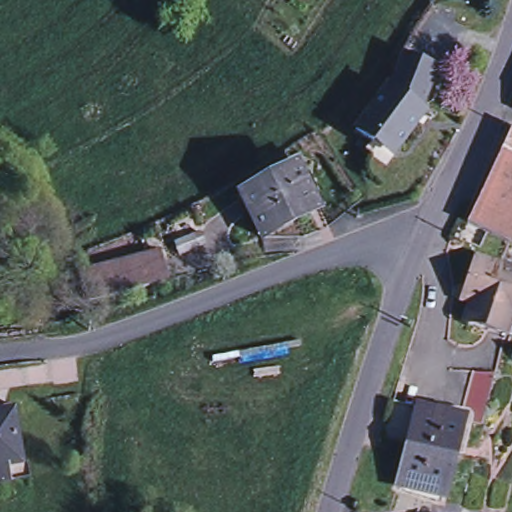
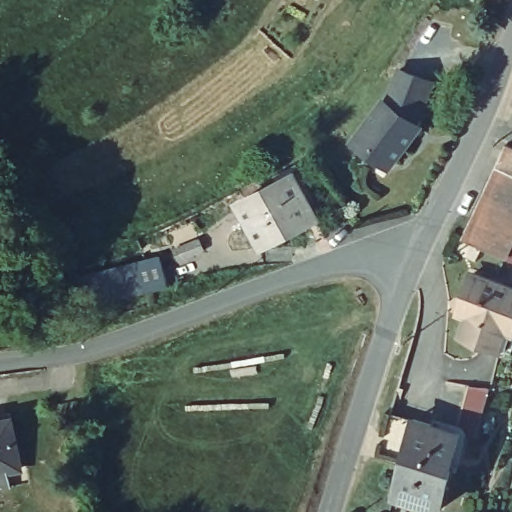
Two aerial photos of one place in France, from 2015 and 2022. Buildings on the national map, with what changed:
unchanged [(385,99),(387,101),(400,69),(433,82),(417,124),(421,127),(385,176),(364,161),(370,154),(353,141),(385,99)]
unchanged [(509,123),(512,116),(512,124),(509,123)]
unchanged [(499,252),(467,238),(512,143),(512,257),(499,252)]
unchanged [(239,203),(293,175),(315,220),(261,247),(239,203)]
unchanged [(474,253),(470,261),(461,257),(465,249),(474,253)]
unchanged [(164,257),(172,287),(92,307),(85,277),(164,257)]
unchanged [(460,334),(472,297),(465,295),(472,273),(512,286),(512,331),(506,349),(460,334)]
unchanged [(20,469),(7,471),(10,487),(0,489),(0,414),(10,413),(20,469)]
unchanged [(394,499),(414,421),(459,432),(439,509),(394,499)]

